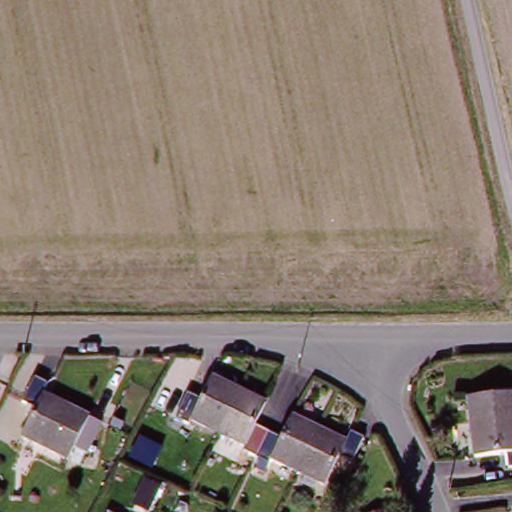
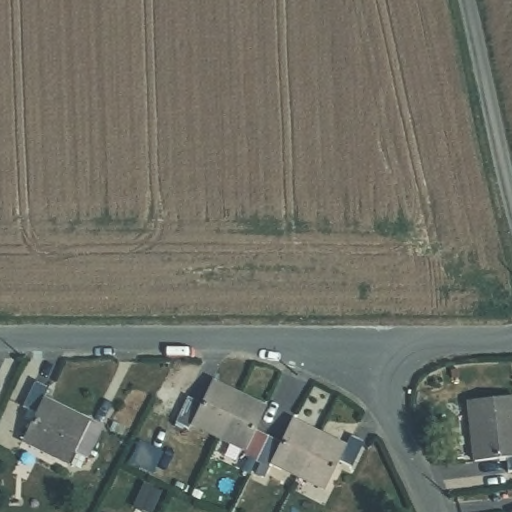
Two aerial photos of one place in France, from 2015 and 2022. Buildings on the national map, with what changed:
unchanged [(85,453),(72,447),(68,455),(22,434),(35,406),(22,400),(34,373),(47,379),(41,394),(87,415),(100,421),(85,453)]
unchanged [(187,429),(176,423),(185,400),(198,407),(207,383),(237,398),(218,437),(188,426),(187,429)]
unchanged [(512,466),(507,466),(507,452),(473,453),(470,400),(512,397),(512,466)]
unchanged [(245,455),(246,451),(218,437),(237,398),(263,409),(254,432),(266,438),(256,460),(245,455)]
unchanged [(266,438),(277,443),(288,421),(316,434),(295,476),(267,462),(263,465),(256,460),(266,438)]
unchanged [(295,476),(316,434),(344,449),(345,445),(357,451),(346,472),(334,467),(323,489),(295,476)]
unchanged [(108,512),(107,512),(107,511),(108,512)]

